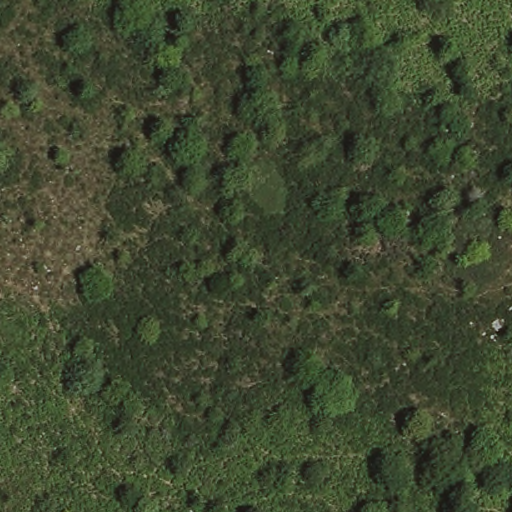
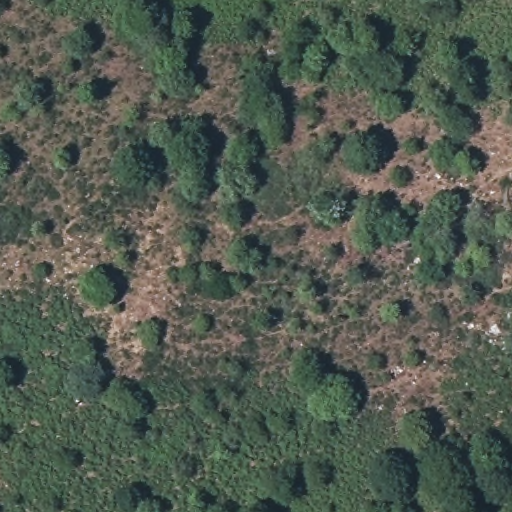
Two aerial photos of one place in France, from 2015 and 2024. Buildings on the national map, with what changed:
[]

